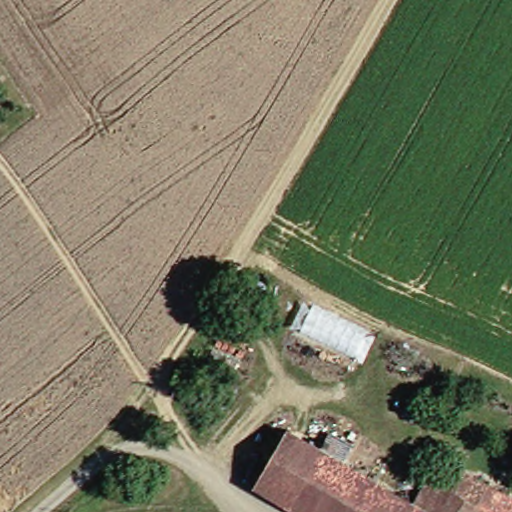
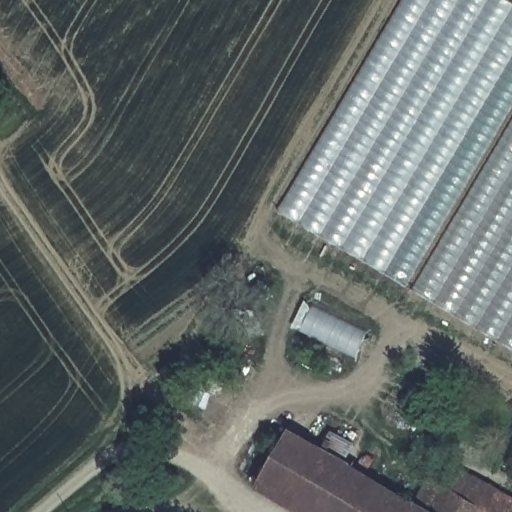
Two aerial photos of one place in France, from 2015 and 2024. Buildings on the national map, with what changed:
new [(11,0),(283,0),(106,129),(11,0)]
new [(405,0),(507,0),(512,3),(512,351),(280,213),(405,0)]
unchanged [(268,306),(247,345),(226,334),(247,294),(268,306)]
unchanged [(382,478),(362,512),(315,512),(269,484),(260,478),(293,424),(298,427),(382,478)]
unchanged [(420,501),(435,476),(467,496),(482,473),(512,491),(512,512),(490,512),(483,508),(481,512),(362,512),(382,478),(420,501)]

